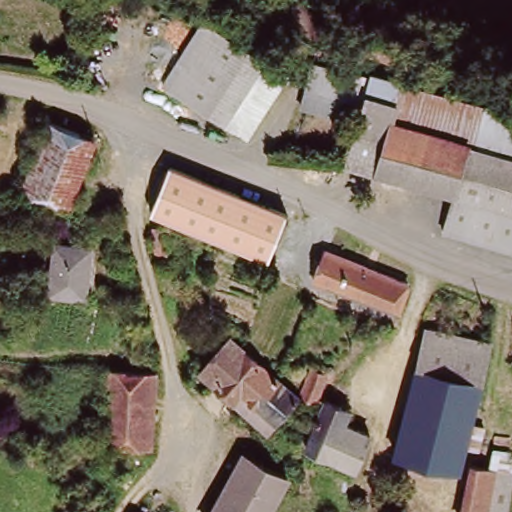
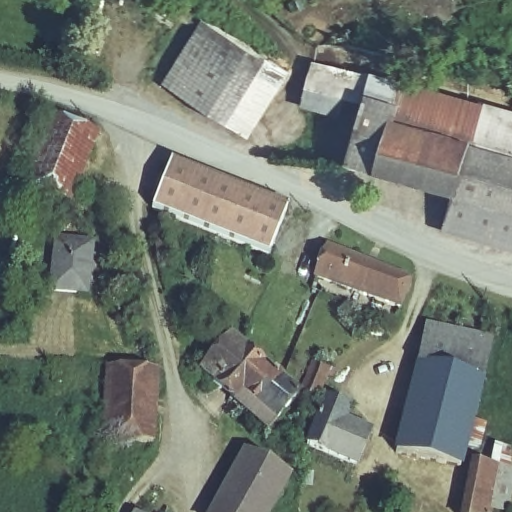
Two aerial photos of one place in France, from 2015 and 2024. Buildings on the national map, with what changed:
unchanged [(260,69),(231,120),(164,81),(200,17),(267,55),(260,69)]
unchanged [(512,105),(512,148),(389,113),(387,105),(362,101),(358,118),(301,101),(317,51),(512,105)]
unchanged [(260,69),(282,81),(254,133),(231,120),(260,69)]
unchanged [(505,241),(447,225),(457,187),(348,158),(358,118),(362,101),(387,105),(389,113),(512,148),(512,222),(505,241)]
unchanged [(96,139),(67,215),(50,208),(54,198),(23,187),(48,121),(96,139)]
unchanged [(154,208),(173,162),(192,169),(177,217),(154,208)]
unchanged [(290,212),(270,256),(177,217),(192,169),(290,212)]
unchanged [(505,241),(512,222),(512,244),(505,241)]
unchanged [(82,299),(47,293),(47,290),(57,240),(92,245),(85,288),(82,299)]
unchanged [(328,240),(407,274),(397,303),(317,269),(328,240)]
unchanged [(332,281),(329,291),(317,287),(320,276),(332,281)]
unchanged [(431,322),(496,338),(485,382),(419,363),(424,344),(431,322)]
unchanged [(202,366),(222,340),(288,393),(265,422),(233,394),(228,400),(208,383),(214,377),(202,366)]
unchanged [(302,360),(318,365),(309,397),(292,390),(302,360)]
unchanged [(463,466),(397,452),(419,363),(485,382),(463,466)]
unchanged [(99,440),(103,370),(157,373),(153,445),(143,445),(142,454),(132,452),(132,443),(99,440)]
unchanged [(353,431),(342,464),(299,448),(314,399),(338,408),(335,420),(353,431)]
unchanged [(287,473),(266,512),(210,512),(244,450),(287,473)]
unchanged [(495,512),(472,512),(475,482),(477,464),(486,465),(501,466),(495,512)]
unchanged [(407,479),(411,495),(404,497),(401,481),(407,479)]

